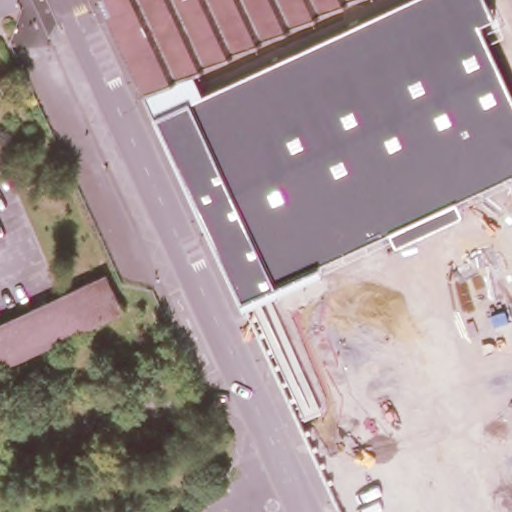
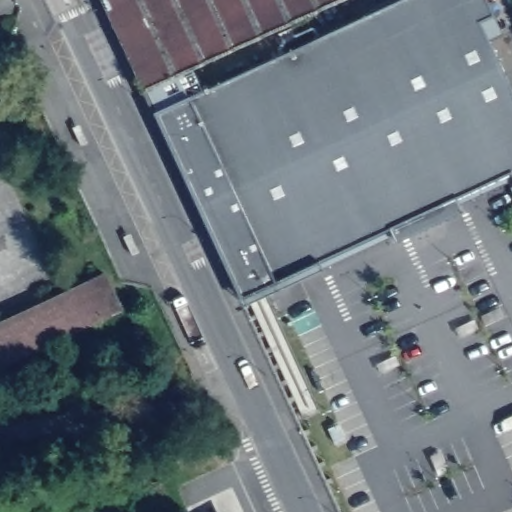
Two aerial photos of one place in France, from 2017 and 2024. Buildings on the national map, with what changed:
unchanged [(139,87),(98,0),(330,0),(139,87)]
unchanged [(512,90),(512,170),(457,196),(462,210),(397,240),(392,227),(319,260),(243,296),(155,112),(143,86),(191,64),(205,90),(398,0),(487,0),(494,14),(479,20),(512,90)]
unchanged [(122,305),(0,359),(0,319),(107,272),(122,305)]

